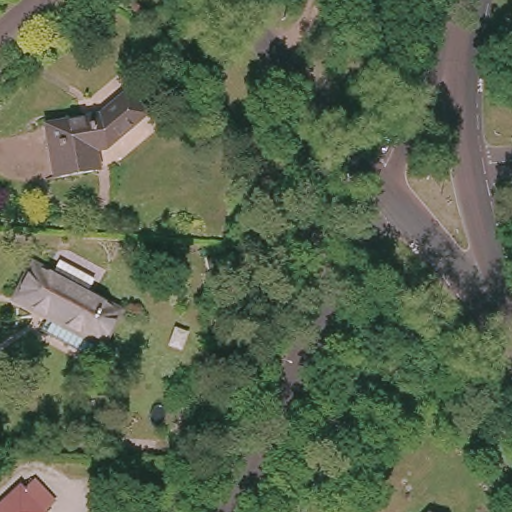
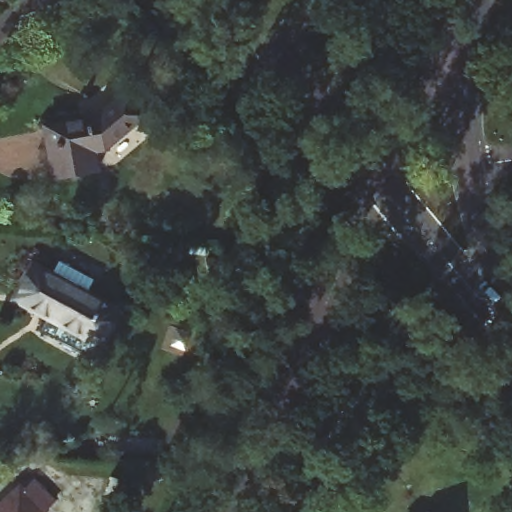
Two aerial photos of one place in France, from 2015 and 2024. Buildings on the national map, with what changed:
unchanged [(100,117),(129,94),(134,99),(148,116),(105,152),(88,151),(87,156),(87,170),(42,167),(45,125),(46,114),(100,117)]
unchanged [(92,291),(124,305),(105,345),(107,346),(104,352),(99,354),(94,352),(95,349),(54,331),(52,335),(46,332),(43,326),(46,320),(48,321),(51,315),(20,301),(35,267),(54,275),(56,268),(60,261),(88,274),(90,271),(97,273),(95,277),(97,278),(94,285),(92,291)]
unchanged [(42,510),(45,512),(0,512),(0,499),(17,482),(22,486),(32,475),(55,498),(42,510)]
unchanged [(419,511),(419,512),(418,512),(419,511)]

